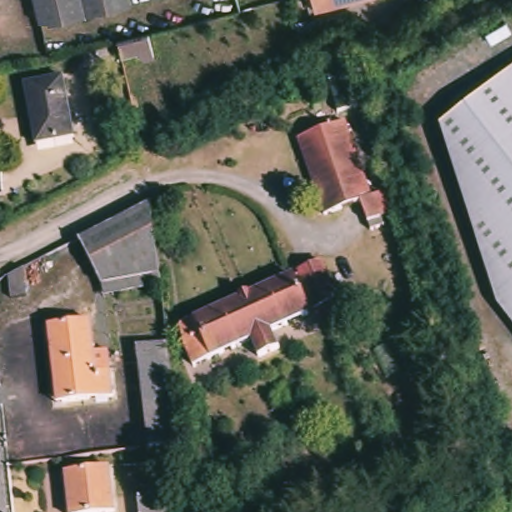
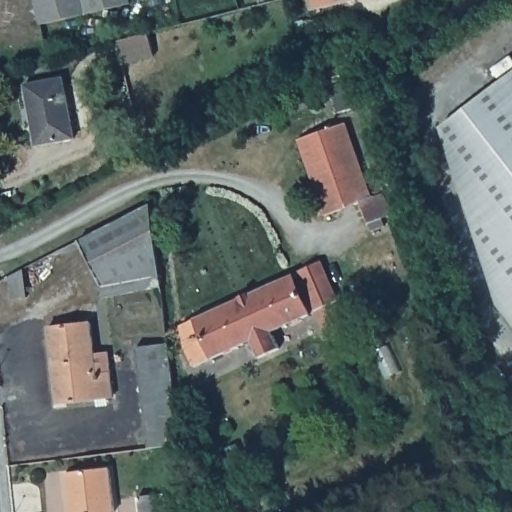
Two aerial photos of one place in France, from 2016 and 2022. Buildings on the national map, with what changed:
unchanged [(131,9),(41,30),(34,0),(129,0),(131,9)]
unchanged [(316,10),(313,0),(354,0),(316,10)]
unchanged [(117,40),(149,32),(155,57),(122,65),(117,40)]
unchanged [(512,328),(497,309),(440,131),(512,76),(512,328)]
unchanged [(75,138),(36,145),(25,85),(63,77),(75,138)]
unchanged [(345,123),(372,197),(382,193),(390,215),(380,219),(382,226),(371,230),(361,203),(325,216),(298,140),(345,123)]
unchanged [(104,297),(102,286),(79,240),(150,204),(152,216),(160,276),(161,287),(104,297)]
unchanged [(321,262),(341,305),(352,300),(362,321),(350,326),(347,320),(324,331),(315,311),(298,273),(321,262)]
unchanged [(10,299),(8,276),(17,272),(24,268),(27,297),(10,299)]
unchanged [(280,348),(259,358),(251,341),(194,366),(176,328),(196,319),(292,276),(309,315),(272,331),(280,348)]
unchanged [(55,385),(49,332),(90,327),(95,358),(108,356),(114,402),(65,408),(59,409),(55,385)]
unchanged [(169,348),(181,449),(149,453),(136,352),(169,348)]
unchanged [(69,512),(65,479),(109,473),(113,512),(69,512)]
unchanged [(165,493),(167,512),(139,512),(137,497),(165,493)]

